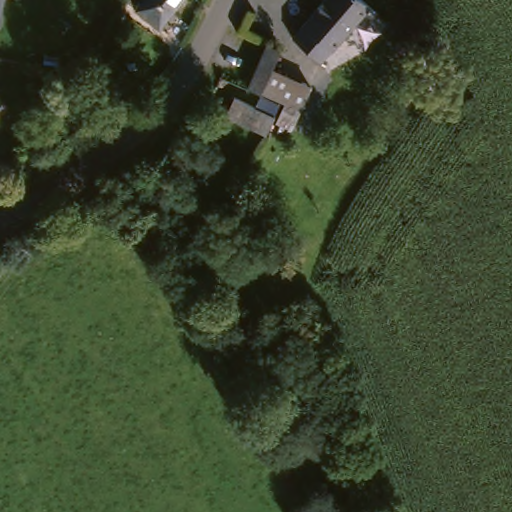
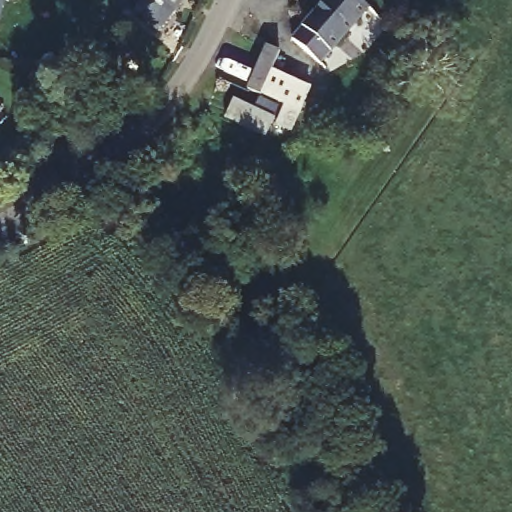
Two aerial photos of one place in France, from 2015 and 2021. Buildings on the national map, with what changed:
unchanged [(149,0),(182,0),(159,31),(138,14),(149,0)]
unchanged [(351,0),(360,7),(316,61),(291,42),(324,0),(351,0)]
unchanged [(259,46),(278,55),(268,78),(256,103),(238,94),(259,46)]
unchanged [(303,97),(293,119),(273,110),(256,103),(268,78),(303,97)]
unchanged [(221,117),(231,98),(271,119),(263,137),(221,117)]

